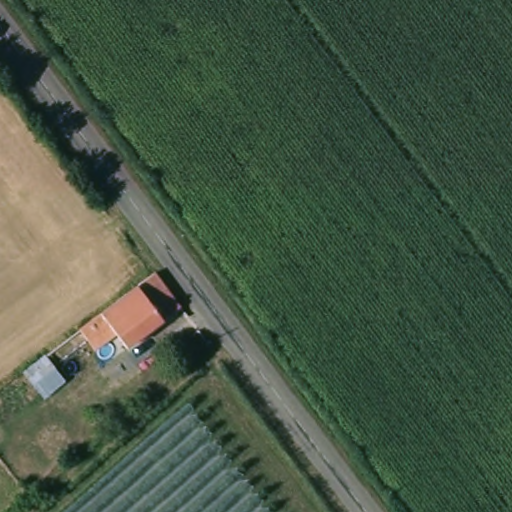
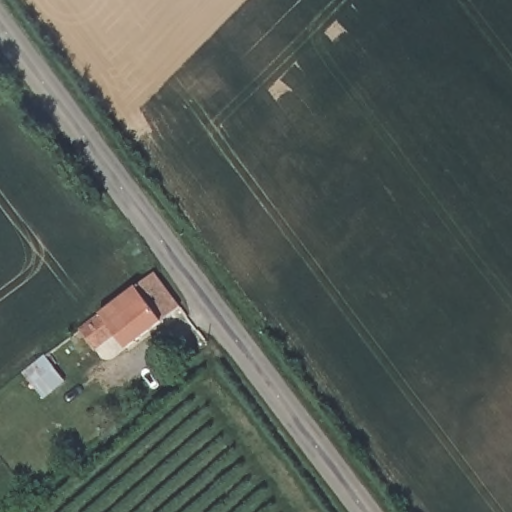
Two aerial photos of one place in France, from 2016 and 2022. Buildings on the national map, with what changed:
unchanged [(112,329),(82,352),(72,340),(82,331),(96,321),(110,310),(124,300),(135,290),(137,288),(139,287),(141,286),(148,280),(150,279),(155,275),(163,285),(166,287),(167,290),(173,297),(176,300),(181,307),(163,321),(128,348),(112,329)]
unchanged [(55,368),(35,383),(28,375),(48,358),(55,368)]

